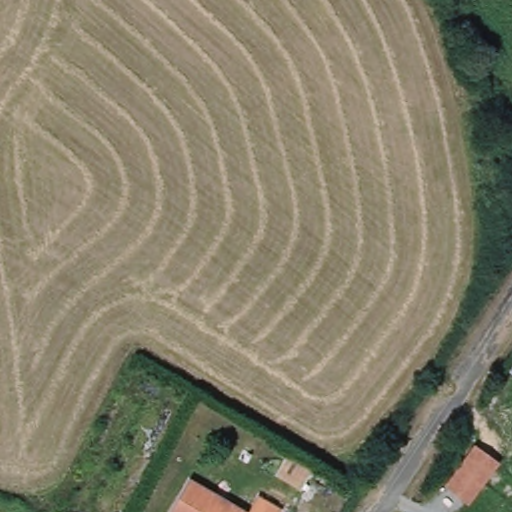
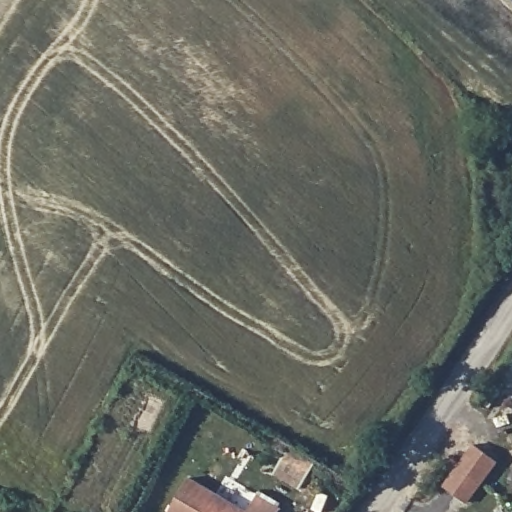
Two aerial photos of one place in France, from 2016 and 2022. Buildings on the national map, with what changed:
unchanged [(469,504),(445,487),(475,444),(500,461),(469,504)]
unchanged [(271,477),(281,456),(310,472),(299,492),(271,477)]
unchanged [(259,494),(286,506),(283,512),(173,512),(192,480),(250,509),(259,494)]

